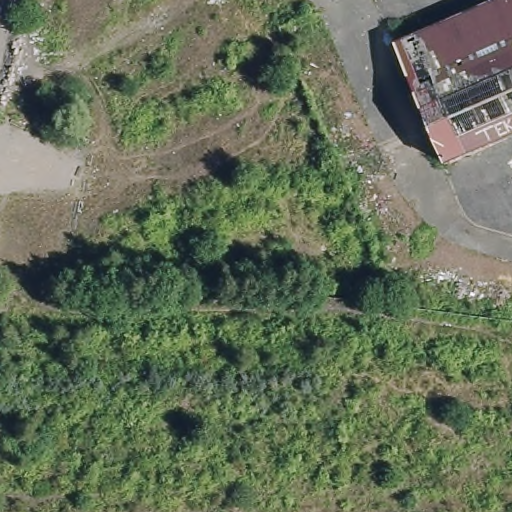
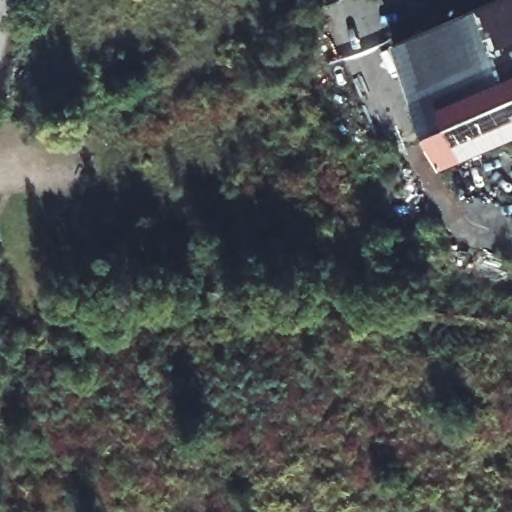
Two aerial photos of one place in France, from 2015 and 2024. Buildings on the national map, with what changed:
unchanged [(391,42),(491,0),(512,0),(512,136),(443,164),(391,42)]

